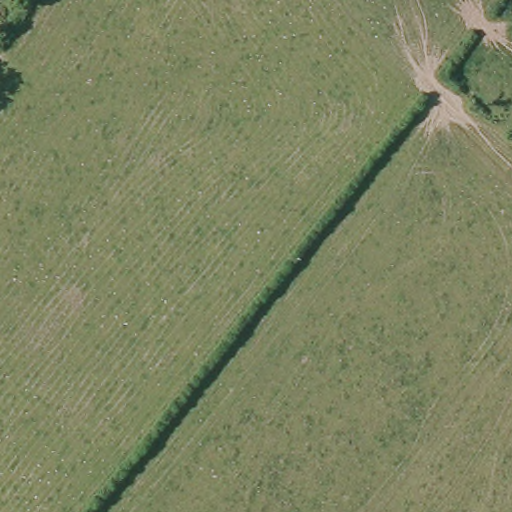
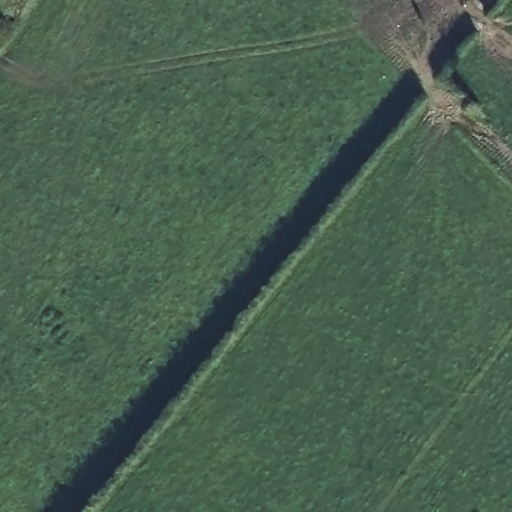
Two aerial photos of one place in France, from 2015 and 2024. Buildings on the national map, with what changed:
[]

